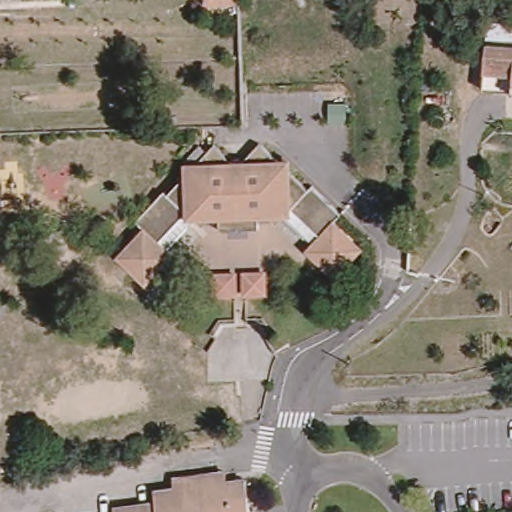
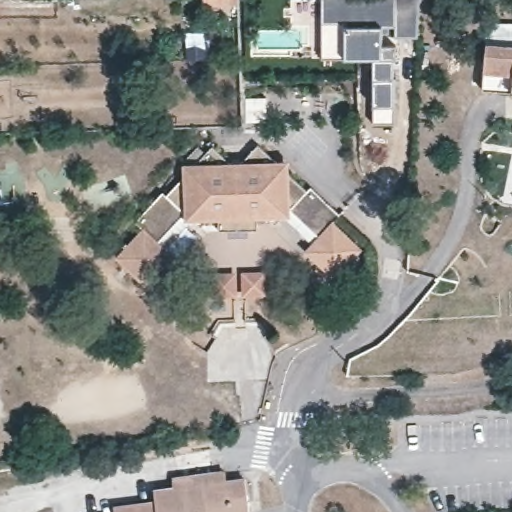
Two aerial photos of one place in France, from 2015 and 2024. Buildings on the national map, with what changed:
new [(418,0),(418,40),(394,40),(395,29),(382,27),(382,47),(396,47),(395,60),(393,60),(393,80),(395,80),(395,125),(374,125),(374,60),(323,59),(323,0),(418,0)]
unchanged [(512,21),(512,86),(483,84),(488,20),(512,21)]
unchanged [(257,144),(310,185),(313,182),(344,207),(339,215),(320,237),(287,211),(279,221),(269,212),(260,214),(260,225),(220,228),(217,217),(209,219),(202,228),(197,228),(191,222),(167,250),(173,256),(146,288),(120,265),(145,235),(139,227),(163,198),(167,199),(208,147),(226,162),(242,161),(257,144)]
unchanged [(320,237),(339,215),(369,240),(345,270),(314,245),(320,237)]
unchanged [(248,289),(245,271),(264,268),(266,287),(248,289)]
unchanged [(213,275),(233,272),(235,290),(215,292),(213,275)]
unchanged [(113,502),(154,497),(153,486),(172,484),(172,474),(213,469),(225,467),(225,476),(245,473),(249,512),(114,512),(113,502)]

